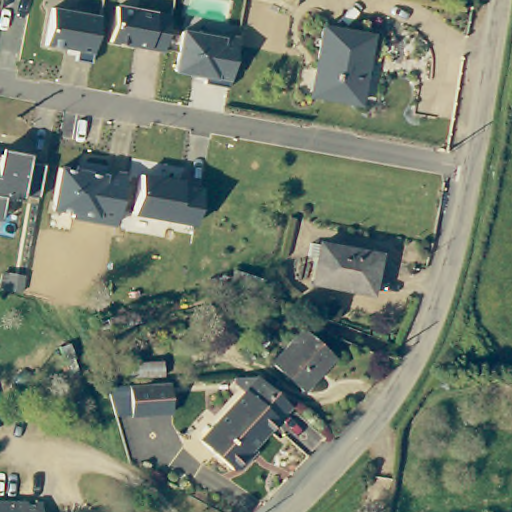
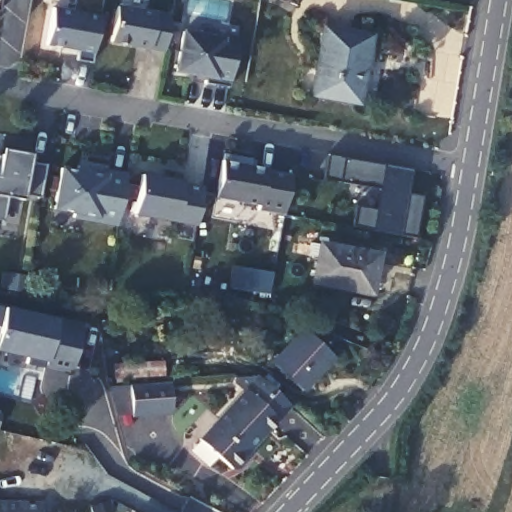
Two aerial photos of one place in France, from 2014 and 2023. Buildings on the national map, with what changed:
unchanged [(168,51),(114,44),(120,5),(172,15),(168,51)]
unchanged [(94,62),(76,61),(78,51),(49,46),(56,8),(101,14),(94,62)]
unchanged [(370,35),(358,102),(310,93),(323,26),(370,35)]
unchanged [(230,87),(205,84),(207,76),(177,71),(184,30),(237,39),(230,87)]
unchanged [(8,197),(4,221),(0,220),(0,156),(1,156),(3,150),(33,155),(30,162),(46,164),(40,198),(23,199),(8,197)]
new [(283,215),(258,210),(259,206),(214,197),(223,153),(250,158),(249,166),(291,174),(283,215)]
new [(414,238),(350,226),(354,207),(376,210),(379,189),(323,179),(327,155),(409,169),(406,193),(421,196),(414,238)]
unchanged [(75,218),(76,212),(57,211),(61,164),(127,172),(121,227),(75,218)]
unchanged [(198,223),(140,215),(144,174),(185,180),(185,186),(200,188),(198,223)]
unchanged [(320,244),(374,255),(367,291),(313,280),(320,244)]
new [(43,370),(45,361),(0,352),(0,307),(4,308),(58,319),(83,325),(71,375),(43,370)]
unchanged [(333,357),(302,390),(270,361),(303,328),(333,357)]
unchanged [(161,362),(162,377),(114,380),(113,364),(161,362)]
unchanged [(245,460),(239,468),(232,467),(200,437),(247,390),(238,382),(238,377),(261,375),(293,405),(245,454),(245,460)]
unchanged [(166,383),(168,413),(134,415),(119,416),(111,386),(132,384),(166,383)]
unchanged [(0,502),(41,503),(41,512),(0,512),(0,502)]

